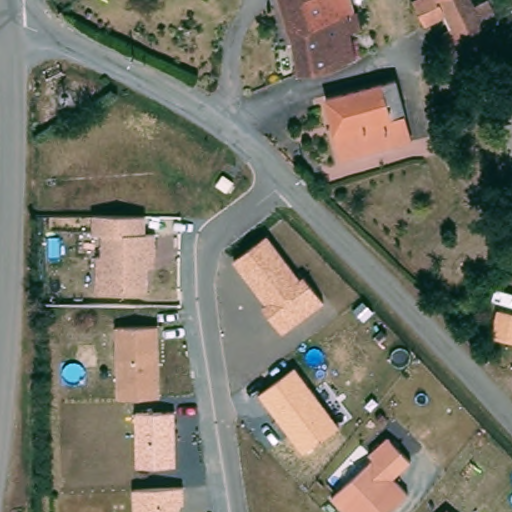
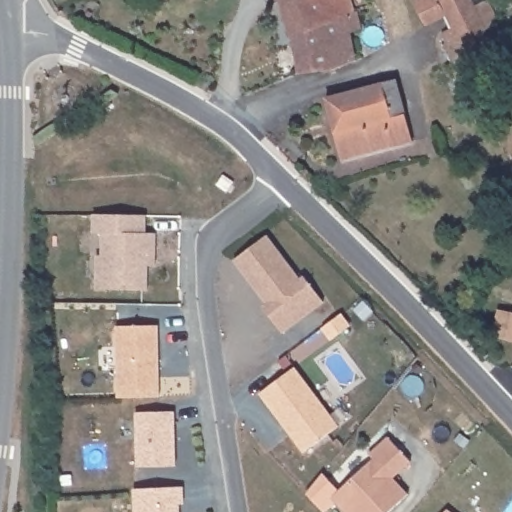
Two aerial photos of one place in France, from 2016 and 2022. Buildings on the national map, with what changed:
unchanged [(353,11),(356,11),(360,29),(351,31),(355,58),(351,60),(330,68),(298,73),(298,72),(291,35),(281,0),(350,0),(353,11)]
unchanged [(493,46),(467,59),(449,20),(428,29),(417,6),(432,0),(472,0),(493,46)]
unchanged [(394,79),(397,93),(385,96),(391,116),(402,113),(410,141),(342,160),(325,98),(394,79)]
unchanged [(101,254),(102,233),(90,233),(91,213),(146,215),(147,232),(155,232),(154,267),(148,268),(148,291),(93,291),(94,254),(101,254)]
unchanged [(262,307),(266,304),(233,262),(268,236),(301,279),(305,276),(325,302),(283,334),(262,307)]
unchanged [(491,339),(499,311),(512,315),(512,344),(491,339)]
unchanged [(157,324),(158,396),(115,397),(115,324),(157,324)]
unchanged [(258,393),(295,366),(339,425),(303,453),(258,393)]
unchanged [(135,412),(176,412),(176,466),(135,467),(135,412)]
unchanged [(387,436),(410,461),(392,478),(406,495),(388,512),(345,512),(329,494),(371,457),(367,452),(387,436)]
unchanged [(183,504),(178,505),(178,512),(132,512),(131,488),(182,486),(183,504)]
unchanged [(451,512),(445,512),(447,509),(451,512)]

